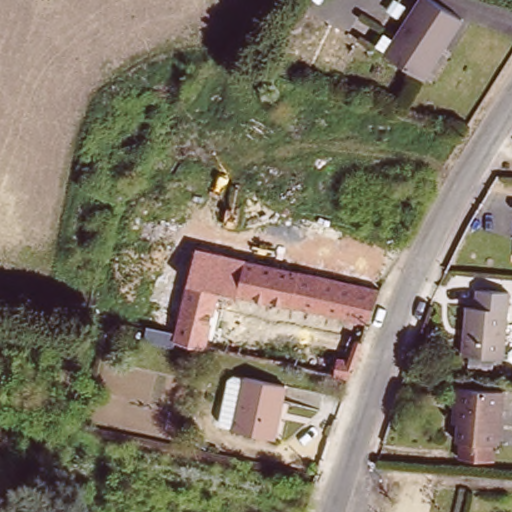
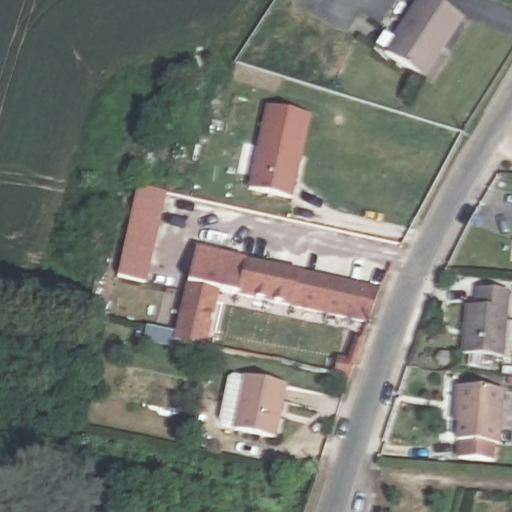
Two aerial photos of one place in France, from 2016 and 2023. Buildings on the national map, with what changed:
unchanged [(419,70),(387,51),(416,0),(439,0),(461,12),(442,46),(425,74),(419,70)]
new [(267,107),(310,117),(292,199),(247,190),(267,107)]
new [(146,282),(119,276),(137,187),(167,194),(146,282)]
unchanged [(179,335),(199,250),(390,286),(378,320),(222,291),(209,347),(177,342),(176,348),(160,345),(162,332),(179,335)]
unchanged [(465,307),(476,308),(479,289),(507,292),(500,360),(462,357),(465,307)]
unchanged [(349,357),(365,356),(358,376),(344,372),(349,357)]
unchanged [(235,380),(240,377),(253,380),(253,378),(295,386),(284,440),(243,431),(243,430),(230,427),(227,423),(235,380)]
unchanged [(462,435),(463,416),(457,415),(459,397),(460,380),(507,383),(502,437),(499,437),(497,453),(464,450),(465,435),(462,435)]

